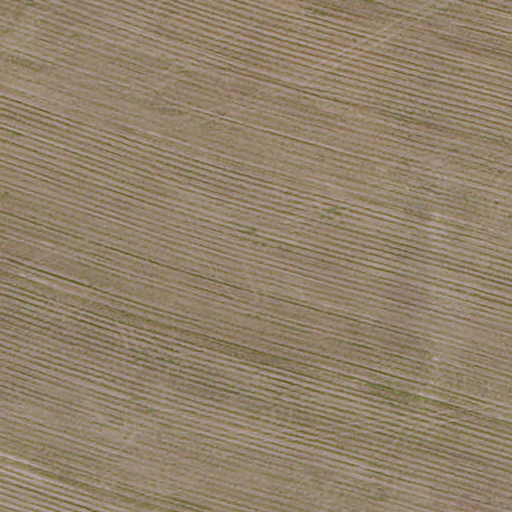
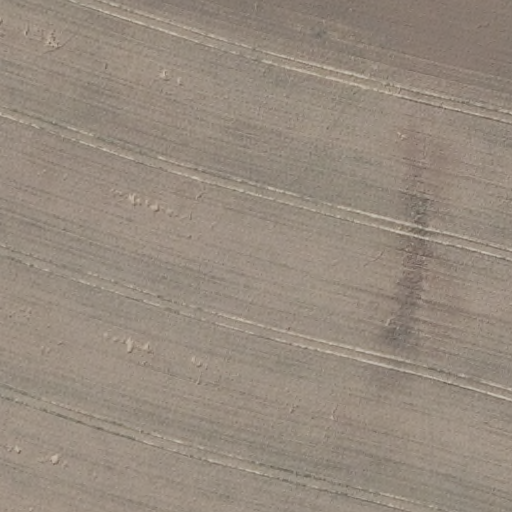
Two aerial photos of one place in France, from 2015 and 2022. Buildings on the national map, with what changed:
[]

